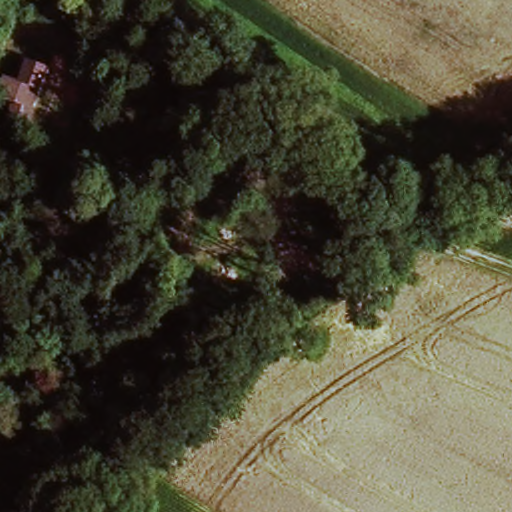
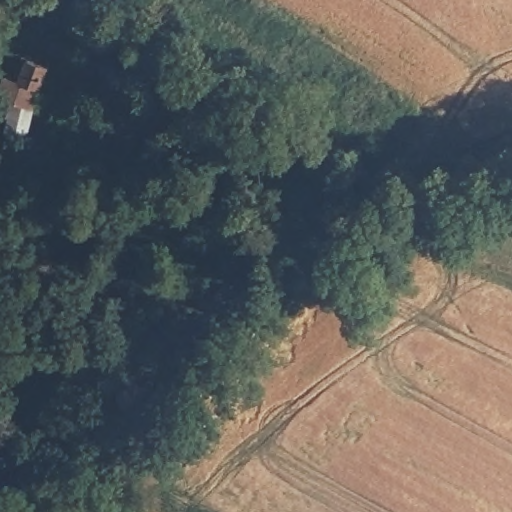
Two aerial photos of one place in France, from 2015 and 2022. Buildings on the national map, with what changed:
unchanged [(0,95),(0,89),(4,68),(39,77),(25,135),(2,131),(10,98),(0,95)]

